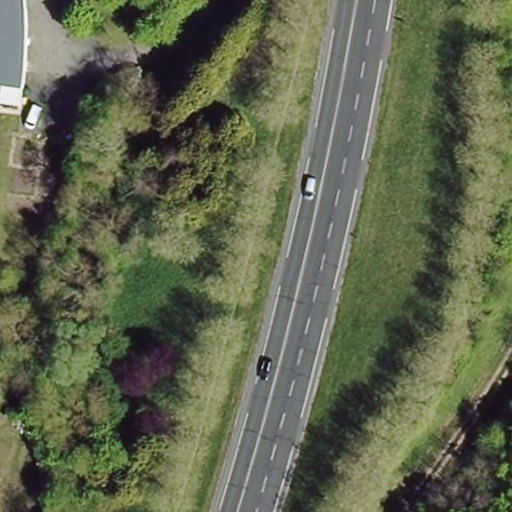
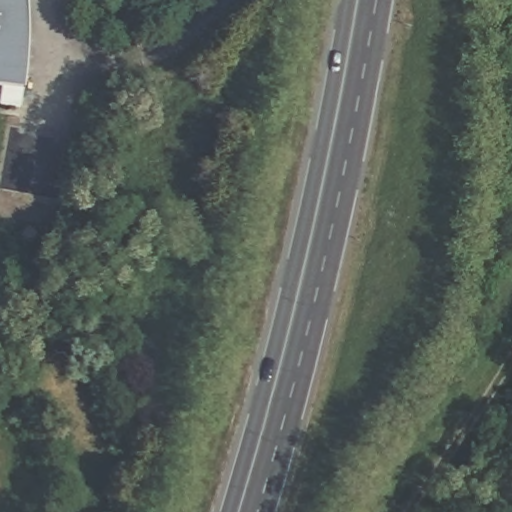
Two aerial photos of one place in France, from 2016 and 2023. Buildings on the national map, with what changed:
unchanged [(31,25),(35,54),(31,82),(0,79),(0,0),(31,0),(31,25)]

